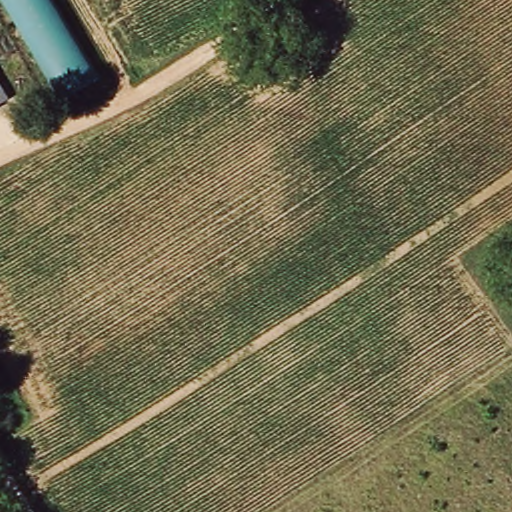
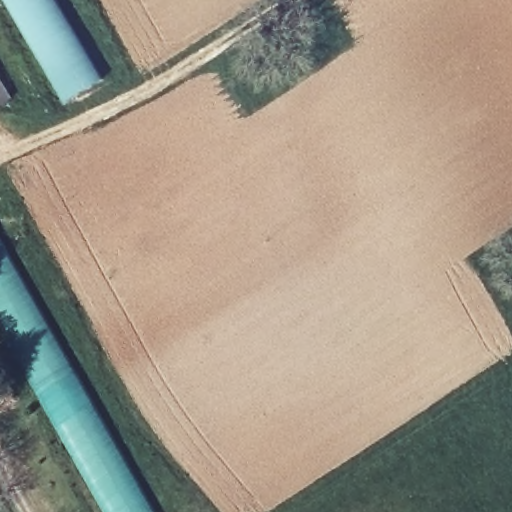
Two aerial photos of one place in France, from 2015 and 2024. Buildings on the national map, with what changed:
unchanged [(0,1),(0,0),(52,0),(93,72),(54,92),(0,1)]
unchanged [(0,99),(4,107),(0,109),(0,99)]
new [(0,333),(0,237),(155,512),(103,512),(0,333)]

